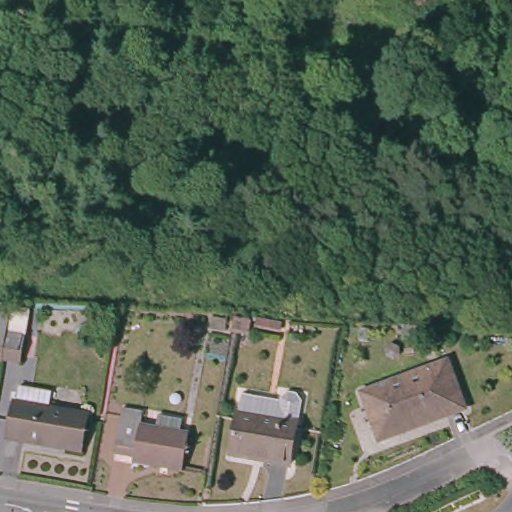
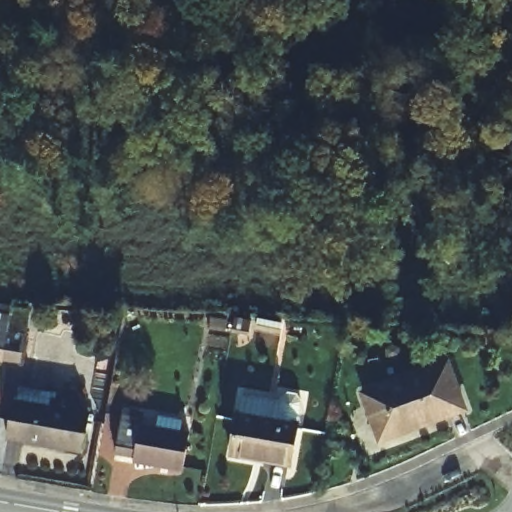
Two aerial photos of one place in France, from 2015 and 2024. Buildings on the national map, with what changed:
unchanged [(22,369),(4,365),(5,361),(0,361),(0,314),(13,316),(9,337),(27,340),(22,369)]
unchanged [(250,335),(229,332),(236,318),(254,320),(259,320),(250,335)]
unchanged [(450,363),(467,409),(381,441),(363,396),(450,363)]
unchanged [(18,393),(50,400),(89,405),(87,421),(80,460),(9,447),(15,408),(18,393)]
unchanged [(298,416),(289,480),(232,470),(240,405),(298,416)]
unchanged [(183,420),(180,435),(211,442),(205,478),(134,465),(135,460),(119,457),(126,410),(183,420)]

